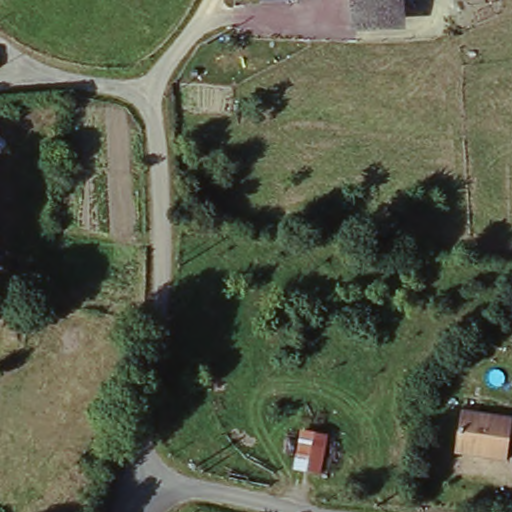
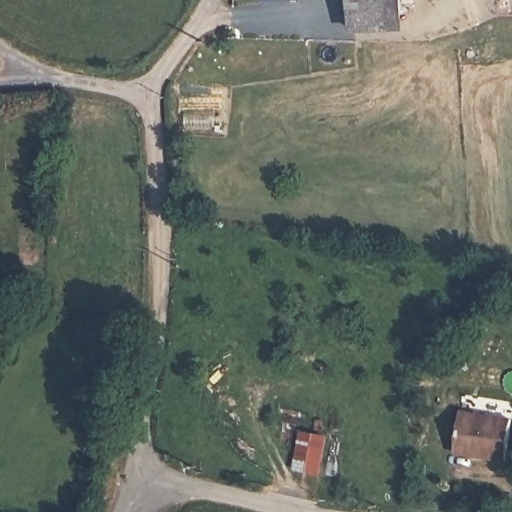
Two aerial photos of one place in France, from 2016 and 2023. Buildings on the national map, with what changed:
unchanged [(296,2),(262,2),(262,0),(297,0),(296,2)]
unchanged [(398,19),(355,21),(354,0),(398,0),(398,19)]
unchanged [(512,419),(512,429),(507,458),(457,450),(464,415),(512,419)]
unchanged [(328,442),(327,476),(293,473),(296,439),(328,442)]

